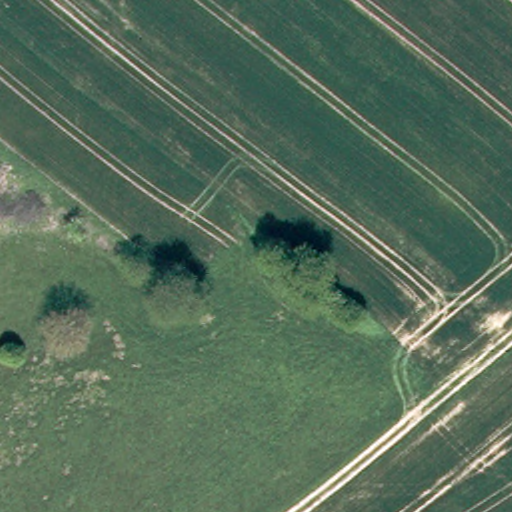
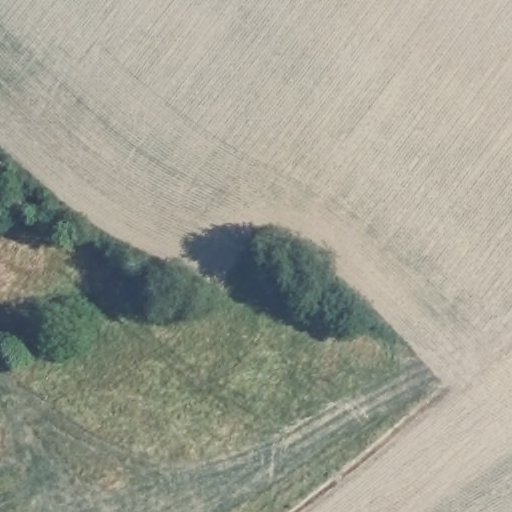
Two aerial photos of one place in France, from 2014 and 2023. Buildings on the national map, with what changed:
[]

